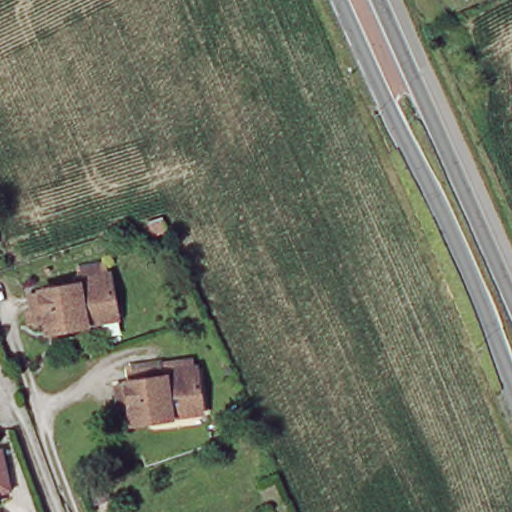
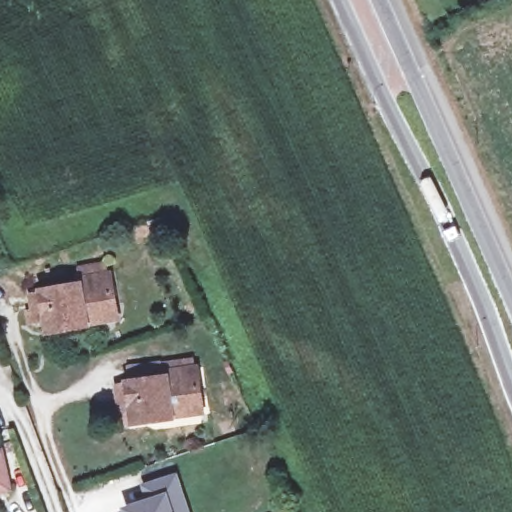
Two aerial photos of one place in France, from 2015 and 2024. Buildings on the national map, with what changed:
unchanged [(32,313),(38,312),(36,294),(82,288),(81,279),(88,278),(87,267),(107,264),(108,275),(112,275),(117,316),(98,318),(98,316),(89,317),(90,328),(52,333),(51,323),(40,324),(34,325),(32,313)]
unchanged [(127,426),(125,421),(123,416),(120,386),(133,384),(131,370),(165,365),(166,367),(195,363),(196,370),(198,370),(204,410),(185,413),(185,408),(171,410),(173,418),(138,423),(138,426),(132,427),(127,426)]
new [(130,506),(154,498),(149,483),(179,473),(192,512),(132,512),(130,506)]
unchanged [(2,489),(0,490),(0,478),(2,489)]

